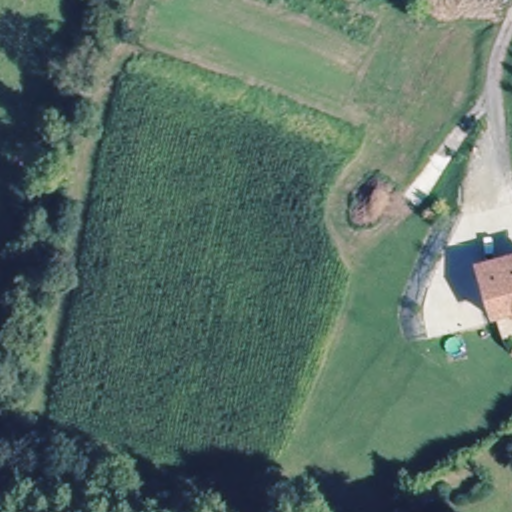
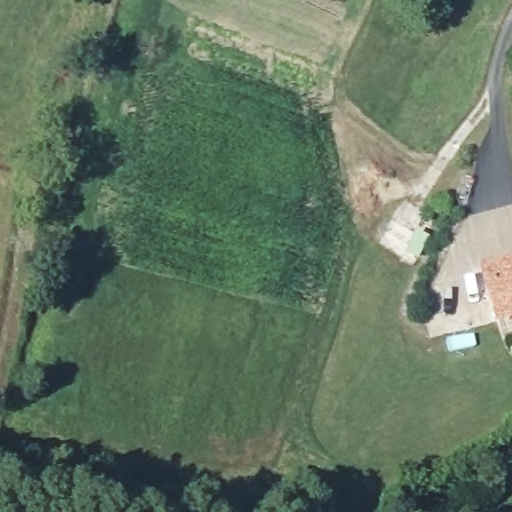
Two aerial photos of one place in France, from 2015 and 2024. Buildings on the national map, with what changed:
unchanged [(498,320),(487,271),(512,265),(512,317),(498,320)]

